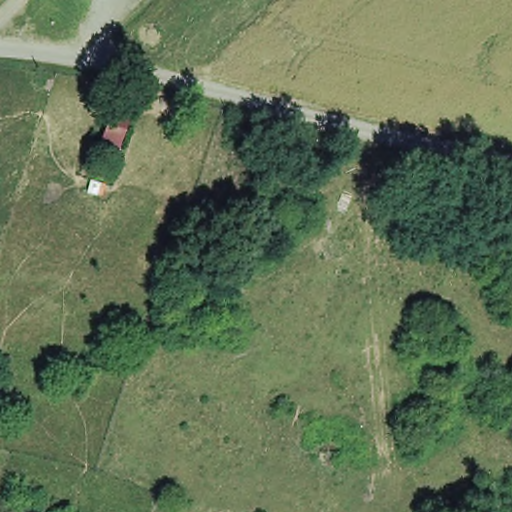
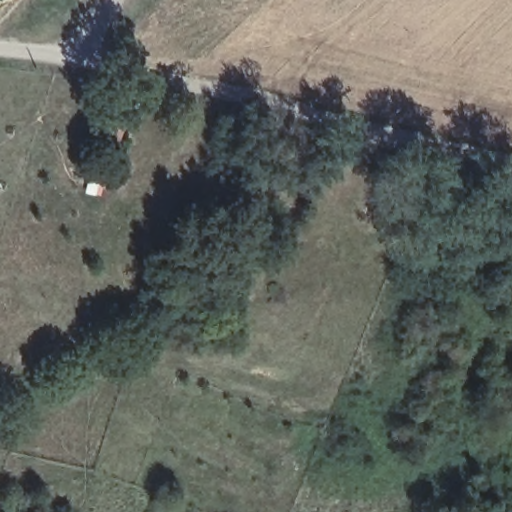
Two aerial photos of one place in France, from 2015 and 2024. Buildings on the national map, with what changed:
unchanged [(105,113),(124,119),(118,136),(100,130),(105,113)]

